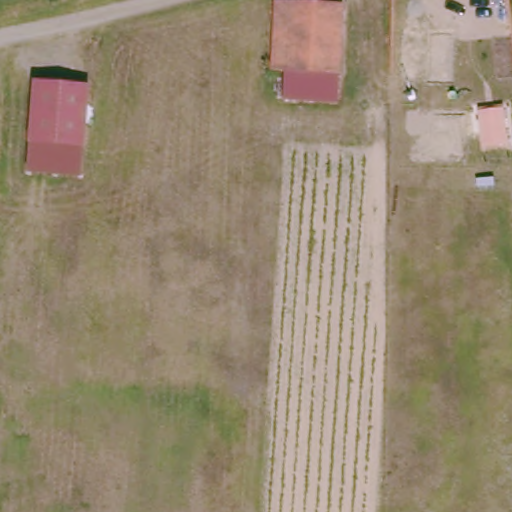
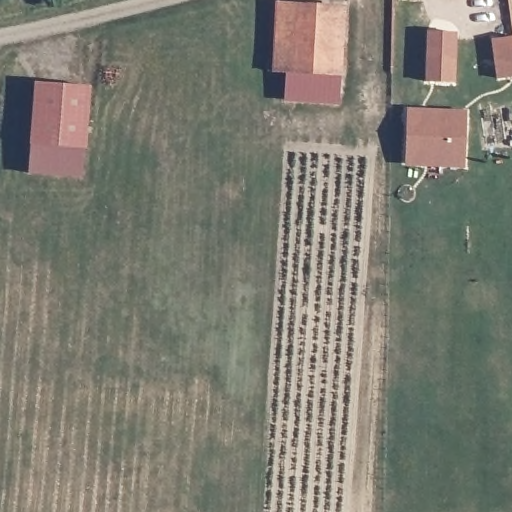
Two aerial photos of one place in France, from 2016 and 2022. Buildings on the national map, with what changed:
unchanged [(285,9),(342,11),(339,77),(282,75),(285,9)]
new [(428,32),(457,32),(455,82),(426,80),(428,32)]
unchanged [(338,105),(289,101),(290,75),(339,77),(338,105)]
unchanged [(38,81),(93,85),(88,149),(85,178),(30,175),(32,144),(38,81)]
new [(409,109),(467,111),(466,167),(406,165),(409,109)]
unchanged [(481,112),(507,109),(512,145),(486,149),(481,112)]

